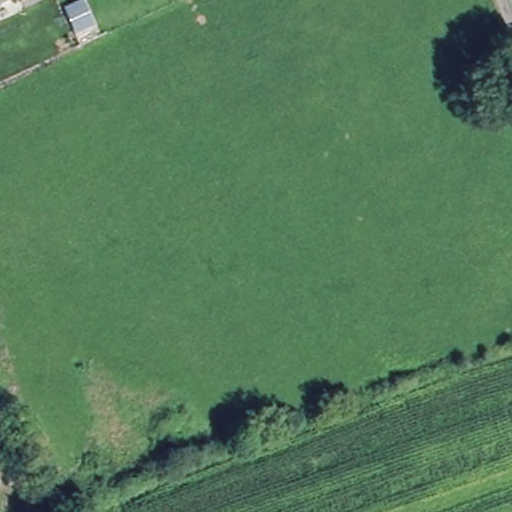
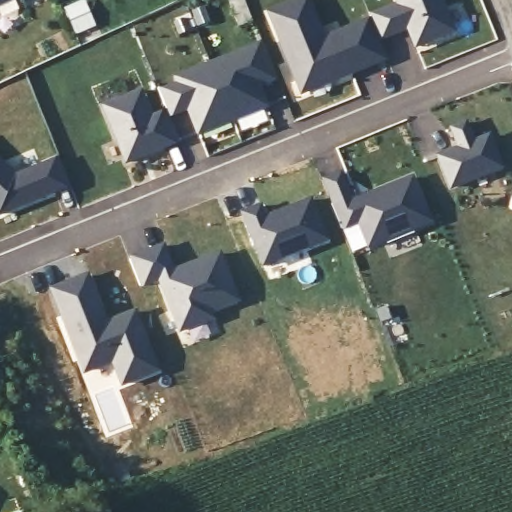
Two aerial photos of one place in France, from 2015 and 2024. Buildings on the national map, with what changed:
new [(309,0),(324,37),(370,18),(388,62),(300,96),(266,11),(293,0),(309,0)]
new [(415,49),(408,29),(380,39),(369,11),(396,2),(395,0),(443,0),(456,32),(415,49)]
new [(278,79),(261,86),(269,107),(198,135),(189,109),(168,116),(166,110),(159,88),(176,82),(173,75),(262,41),(278,79)]
new [(138,90),(149,116),(166,110),(178,140),(124,161),(101,105),(138,90)]
new [(449,186),(437,155),(459,147),(451,128),(465,122),(473,142),(488,136),(500,168),(449,186)]
new [(58,154),(71,190),(5,215),(0,218),(0,157),(15,172),(58,154)]
new [(346,171),(356,194),(414,171),(435,222),(367,250),(366,246),(353,251),(345,232),(356,227),(333,177),(346,171)]
new [(262,204),(265,211),(310,194),(331,240),(263,267),(242,212),(262,204)]
new [(173,266),(221,249),(239,301),(213,310),(215,320),(179,332),(159,280),(141,286),(129,255),(164,242),(173,266)]
new [(105,321),(135,310),(156,369),(122,383),(113,358),(86,369),(53,287),(86,275),(105,321)]

